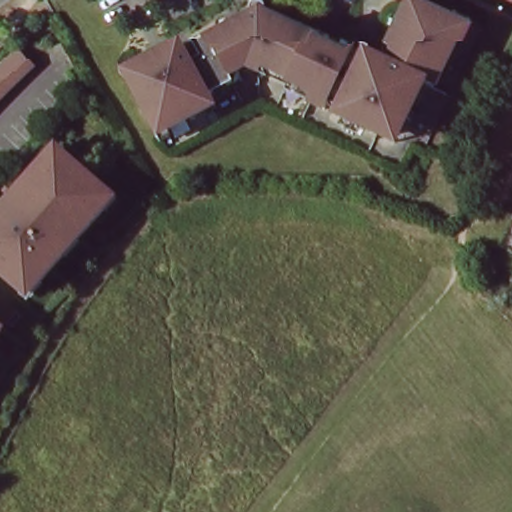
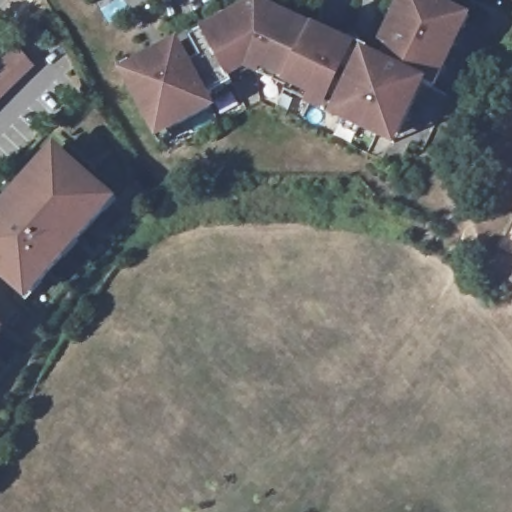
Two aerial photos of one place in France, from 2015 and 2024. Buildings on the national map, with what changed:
unchanged [(219,21),(243,7),(246,12),(249,11),(248,0),(264,0),(265,11),(280,20),(283,16),(296,22),(298,19),(314,26),(313,28),(363,51),(362,53),(335,110),(309,99),(313,90),(287,77),(289,74),(248,55),(245,60),(232,79),(202,25),(216,17),(219,21)]
unchanged [(364,125),(335,110),(362,53),(375,60),(404,0),(432,0),(450,9),(451,6),(469,15),(464,25),(462,23),(432,84),(423,79),(398,130),(394,139),(364,125)]
unchanged [(512,0),(512,6),(498,0),(512,0)]
unchanged [(232,79),(206,93),(211,102),(159,130),(125,69),(177,40),(180,45),(191,37),(188,33),(202,25),(232,79)]
unchanged [(39,67),(0,105),(0,68),(19,46),(39,67)]
unchanged [(11,205),(17,210),(30,195),(24,190),(52,159),(63,168),(70,159),(107,191),(99,200),(110,210),(82,241),(76,236),(63,250),(69,255),(45,282),(39,277),(26,293),(0,271),(0,217),(11,205)]

